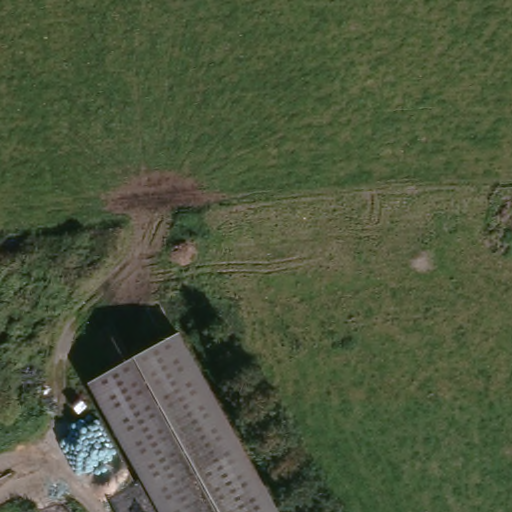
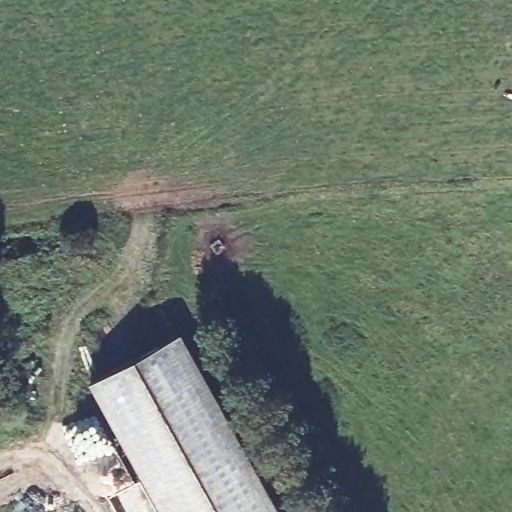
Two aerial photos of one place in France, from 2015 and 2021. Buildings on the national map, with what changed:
unchanged [(280,512),(164,512),(91,382),(181,333),(280,512)]

